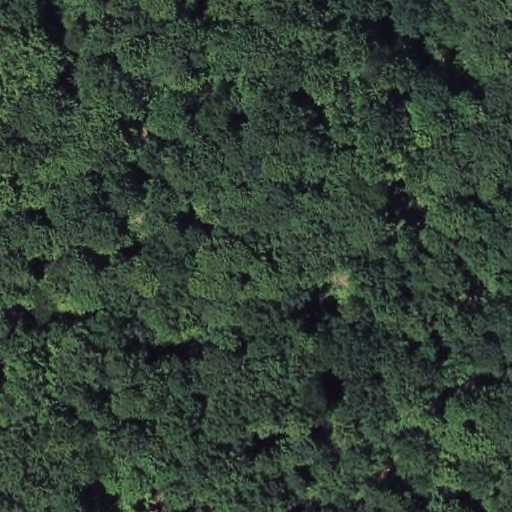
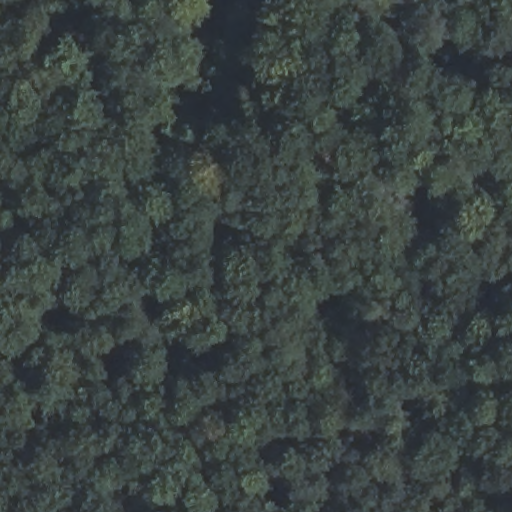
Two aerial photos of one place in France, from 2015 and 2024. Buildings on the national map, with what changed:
[]

